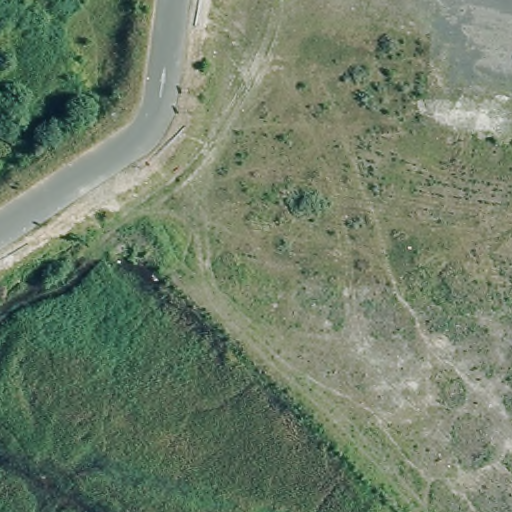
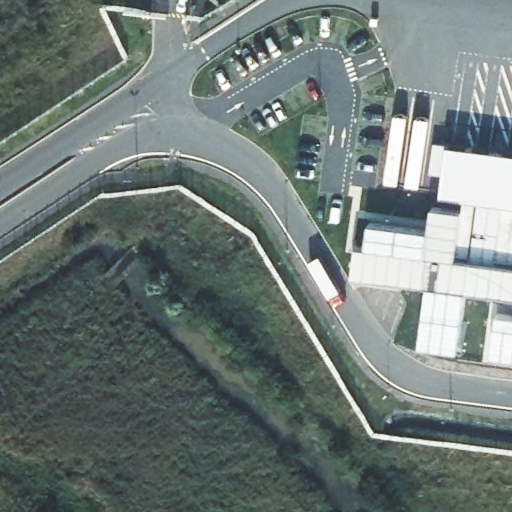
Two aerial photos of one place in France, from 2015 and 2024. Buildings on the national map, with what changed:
new [(512,150),(512,358),(484,355),(496,291),(467,287),(461,351),(420,346),(428,283),(354,275),(359,224),(434,227),(448,143),(512,150)]

